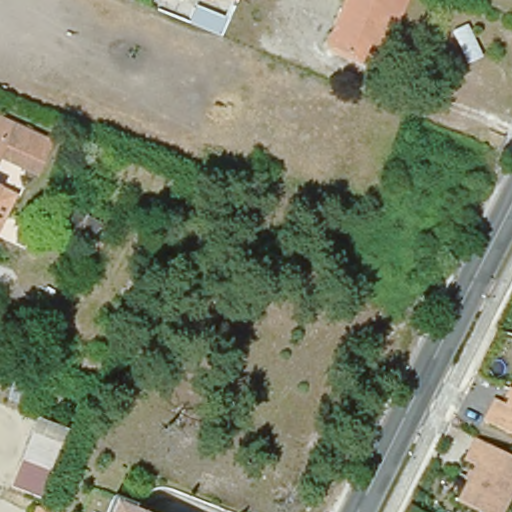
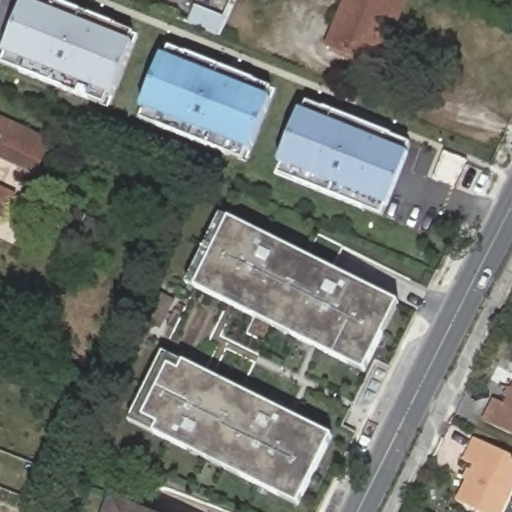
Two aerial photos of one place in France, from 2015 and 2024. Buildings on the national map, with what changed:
new [(109,106),(1,63),(25,0),(52,0),(138,33),(109,106)]
unchanged [(232,4),(221,0),(234,0),(232,4)]
unchanged [(329,53),(348,0),(409,0),(382,73),(329,53)]
unchanged [(234,24),(228,36),(195,21),(201,8),(234,24)]
new [(246,160),(142,119),(171,48),(275,89),(246,160)]
new [(385,218),(275,174),(304,99),(416,145),(385,218)]
unchanged [(31,127),(30,130),(52,140),(41,165),(18,155),(0,148),(0,115),(31,127)]
new [(440,153),(463,162),(453,189),(430,179),(440,153)]
unchanged [(2,211),(0,214),(0,210),(2,211)]
new [(364,373),(194,288),(229,216),(400,302),(364,373)]
new [(299,506),(154,433),(158,425),(143,418),(169,365),(181,370),(185,363),(333,435),(299,506)]
unchanged [(495,399),(509,407),(512,401),(512,436),(485,422),(495,399)]
demolished [(63,439),(51,468),(21,456),(33,427),(63,439)]
unchanged [(479,467),(467,461),(477,438),(512,454),(512,486),(499,512),(486,512),(464,500),(479,467)]
demolished [(51,468),(39,501),(7,489),(21,456),(51,468)]
unchanged [(153,512),(102,512),(109,495),(153,512)]

